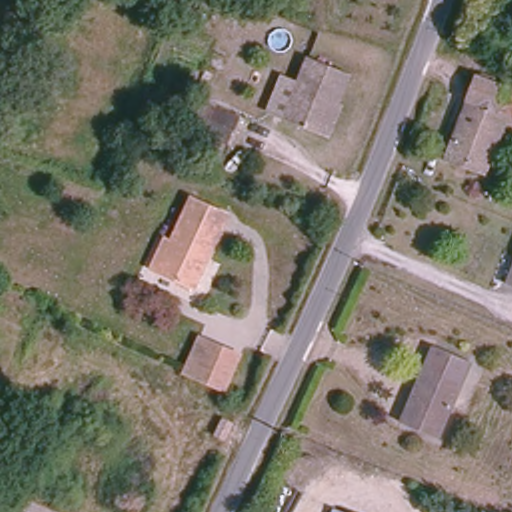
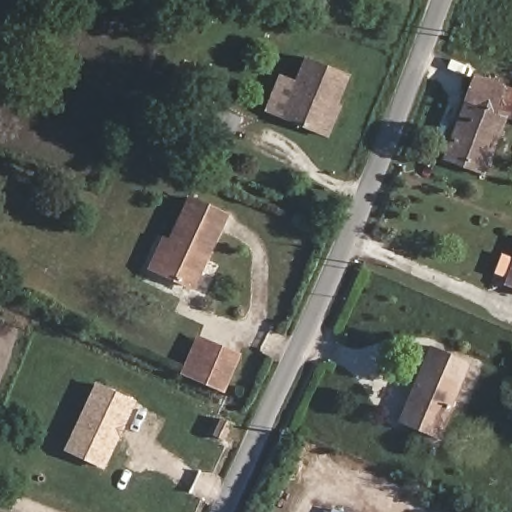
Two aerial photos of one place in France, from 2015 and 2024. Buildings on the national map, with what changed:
unchanged [(327,140),(319,138),(276,121),(262,114),(275,76),(291,84),(302,57),(343,73),(331,105),(340,110),(327,140)]
unchanged [(473,97),(482,75),(511,86),(512,87),(512,118),(487,175),(455,160),(447,157),(456,136),(473,97)]
unchanged [(231,144),(212,137),(200,133),(212,107),(222,111),(240,119),(231,144)]
unchanged [(167,230),(179,236),(196,196),(232,213),(197,287),(162,271),(151,265),(167,230)]
unchanged [(512,264),(512,289),(503,286),(512,264)]
unchanged [(183,372),(199,335),(237,352),(222,389),(183,372)]
unchanged [(433,347),(468,361),(438,437),(403,423),(433,347)]
new [(115,446),(117,447),(105,470),(63,451),(97,381),(136,400),(115,446)]
new [(218,435),(225,418),(235,422),(228,440),(218,435)]

